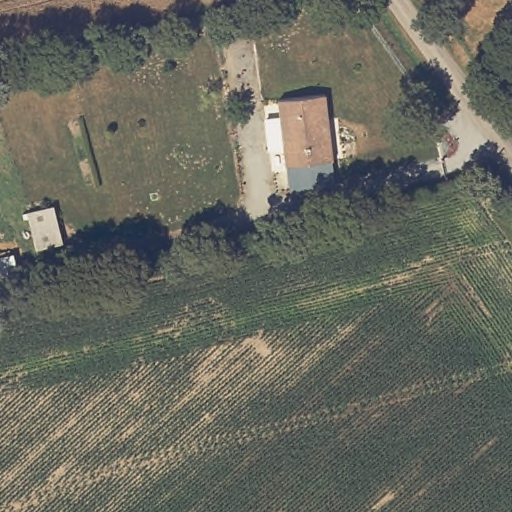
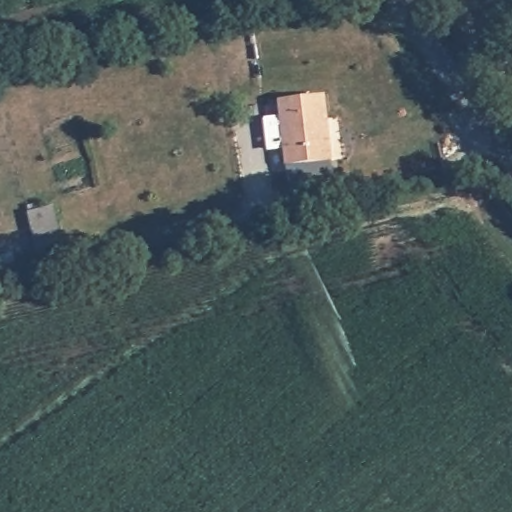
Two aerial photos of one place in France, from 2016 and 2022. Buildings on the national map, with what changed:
unchanged [(281,90),(326,85),(334,151),(288,157),(281,90)]
unchanged [(337,176),(291,181),(288,157),(334,151),(337,176)]
unchanged [(33,249),(25,213),(48,208),(56,243),(33,249)]

